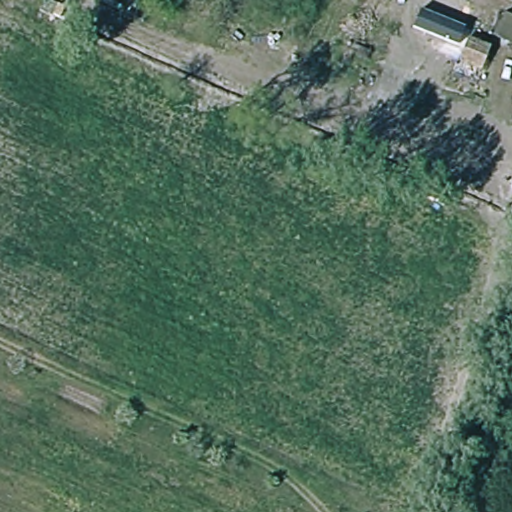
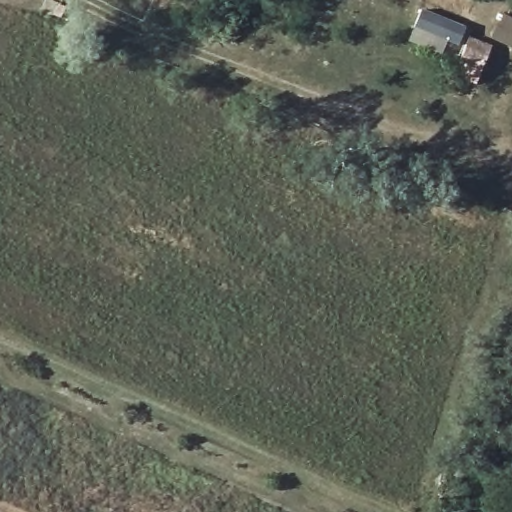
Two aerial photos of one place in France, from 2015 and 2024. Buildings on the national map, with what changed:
unchanged [(491,39),(504,11),(512,15),(512,48),(491,39)]
unchanged [(482,75),(457,62),(468,35),(493,49),(482,75)]

